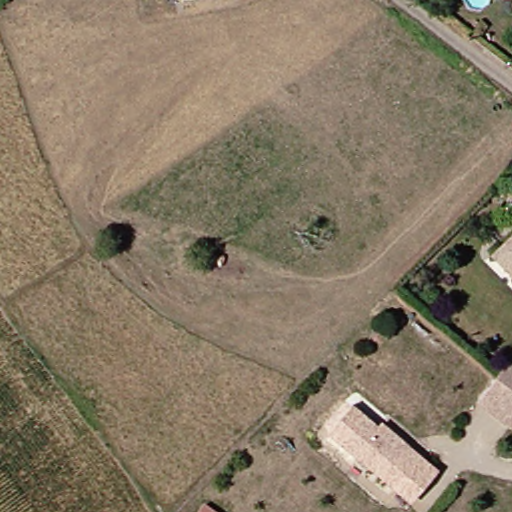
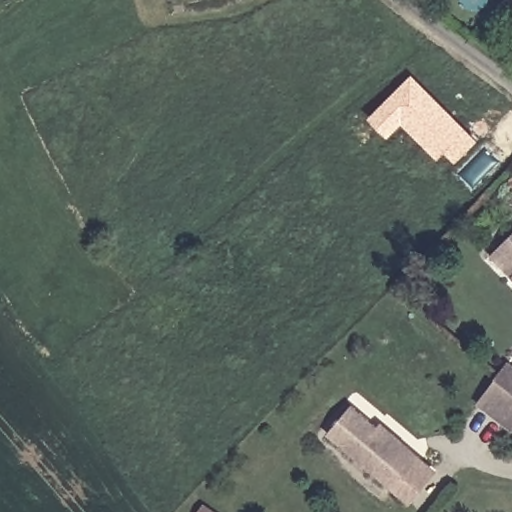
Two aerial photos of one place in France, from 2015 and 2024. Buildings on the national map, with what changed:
new [(412,74),(478,141),(455,161),(445,151),(437,159),(403,123),(388,137),(368,117),(412,74)]
unchanged [(512,181),(512,185),(510,183),(512,181)]
unchanged [(497,263),(512,250),(512,278),(497,263)]
unchanged [(478,397),(496,375),(509,360),(512,363),(512,427),(478,397)]
unchanged [(390,497),(327,436),(353,409),(378,433),(381,430),(406,453),(419,466),(390,497)]

